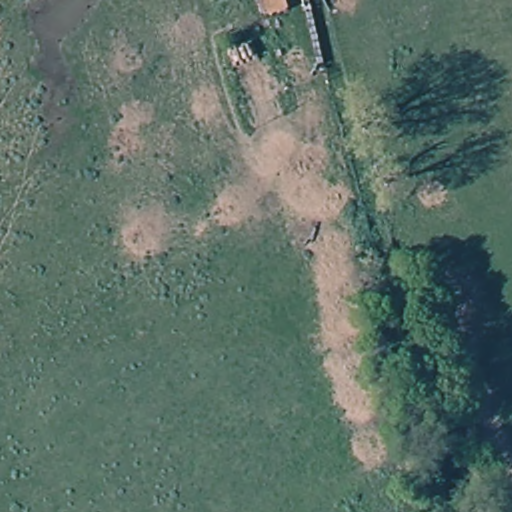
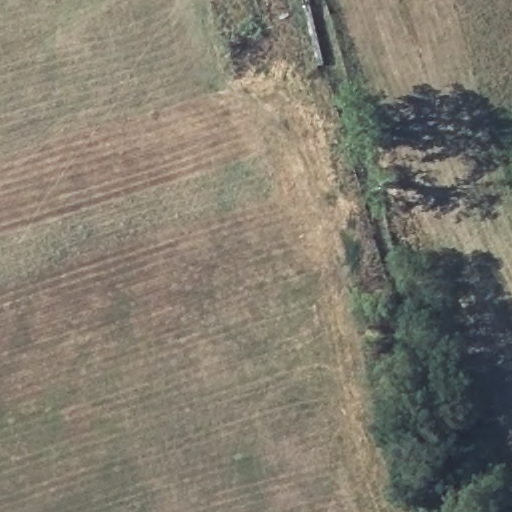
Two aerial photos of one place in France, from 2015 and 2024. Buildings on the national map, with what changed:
unchanged [(273,14),(268,0),(289,0),(292,9),(273,14)]

